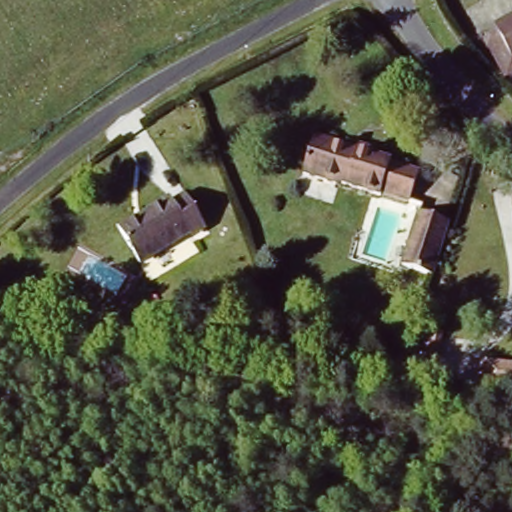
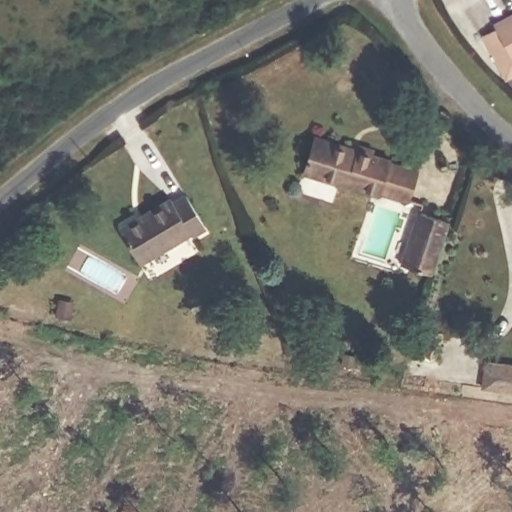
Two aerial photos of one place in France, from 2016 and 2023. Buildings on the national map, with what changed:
unchanged [(512,61),(492,22),(512,11),(512,61)]
unchanged [(438,127),(407,143),(383,96),(414,80),(438,127)]
unchanged [(408,206),(301,176),(314,134),(419,164),(408,206)]
unchanged [(171,203),(183,195),(206,231),(194,239),(187,228),(139,260),(119,229),(167,197),(171,203)]
unchanged [(512,365),(512,397),(467,390),(472,359),(512,365)]

